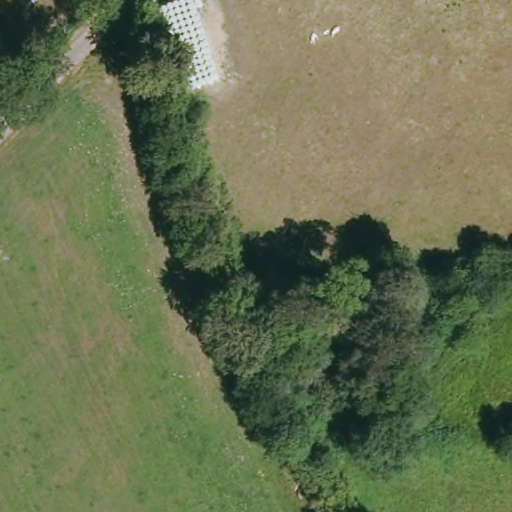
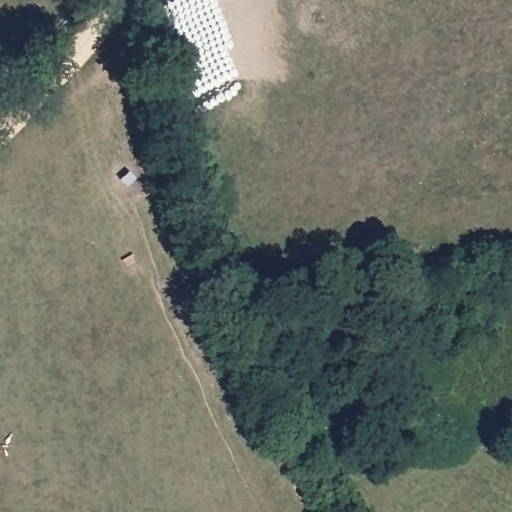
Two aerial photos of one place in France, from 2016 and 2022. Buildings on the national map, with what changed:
[]

